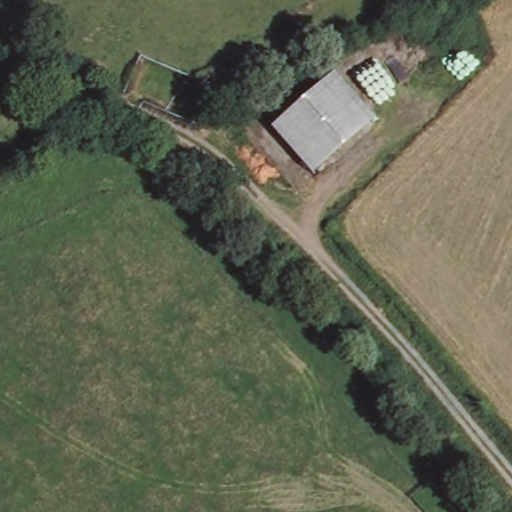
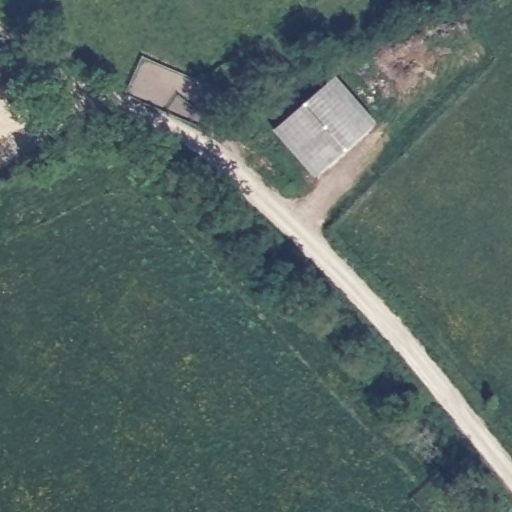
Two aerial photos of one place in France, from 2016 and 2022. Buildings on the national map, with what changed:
unchanged [(334,77),(375,123),(312,180),(270,131),(334,77)]

